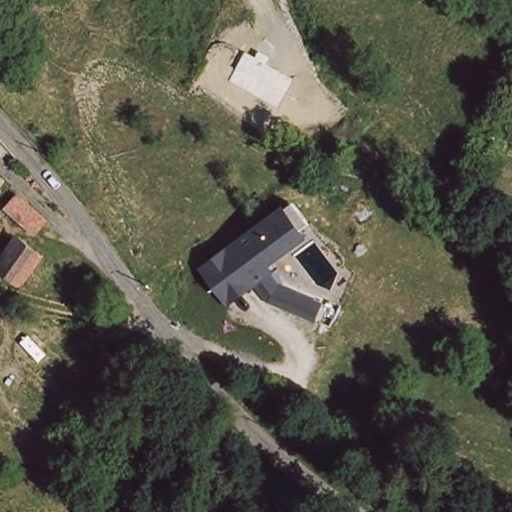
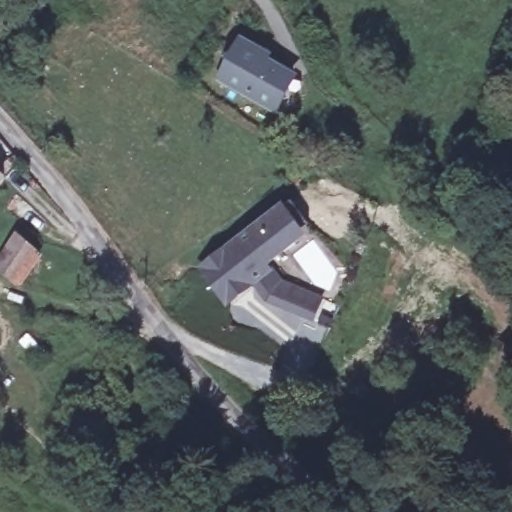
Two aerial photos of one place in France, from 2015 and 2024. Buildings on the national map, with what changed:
new [(242,39),(275,57),(272,60),(299,75),(276,115),(218,83),(242,39)]
unchanged [(0,191),(0,155),(15,166),(0,191)]
unchanged [(52,207),(39,229),(9,210),(25,187),(52,207)]
unchanged [(0,217),(0,204),(5,208),(0,217)]
unchanged [(265,270),(272,278),(323,299),(315,324),(257,301),(251,294),(220,311),(195,275),(288,204),(307,239),(265,270)]
unchanged [(0,258),(20,235),(42,254),(22,277),(0,260),(0,258)]

